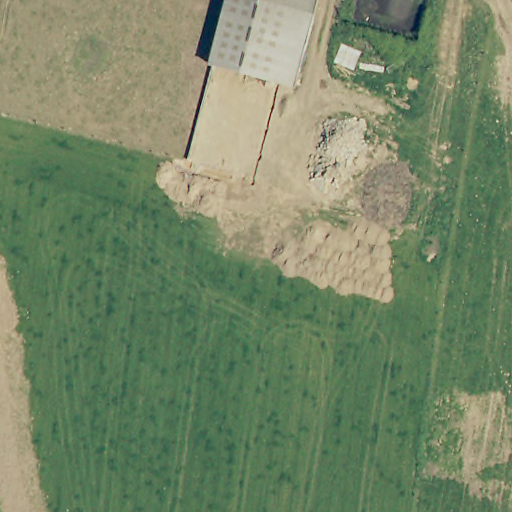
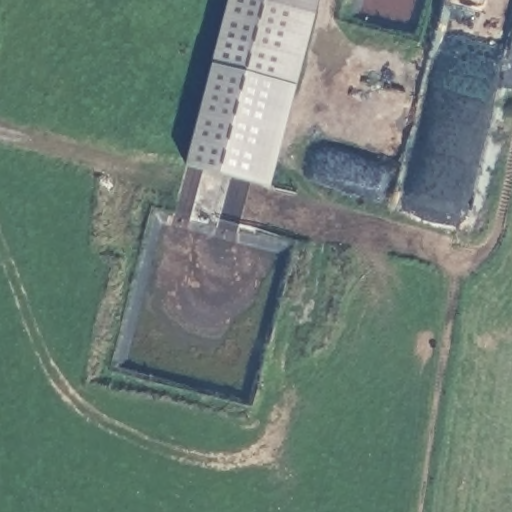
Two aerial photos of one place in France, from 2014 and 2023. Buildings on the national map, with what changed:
unchanged [(301,88),(215,69),(232,0),(269,0),(316,13),(301,88)]
unchanged [(320,0),(316,13),(269,0),(320,0)]
new [(301,88),(276,189),(192,166),(215,69),(301,88)]

